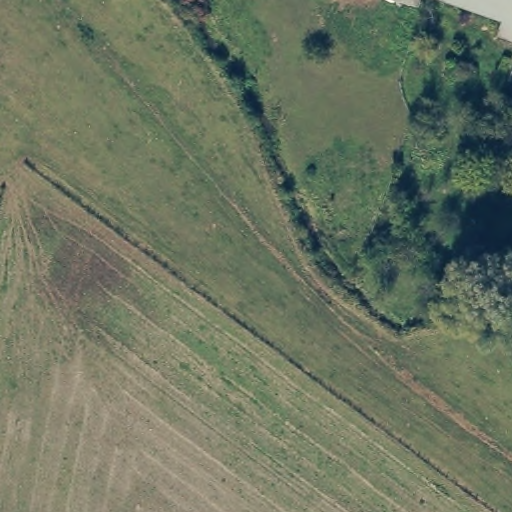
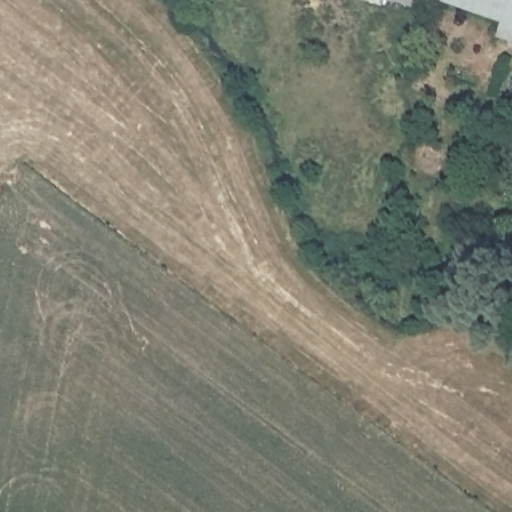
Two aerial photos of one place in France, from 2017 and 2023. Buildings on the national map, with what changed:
unchanged [(387,0),(420,0),(417,10),(387,0)]
unchanged [(426,1),(426,0),(512,0),(512,32),(501,28),(426,1)]

